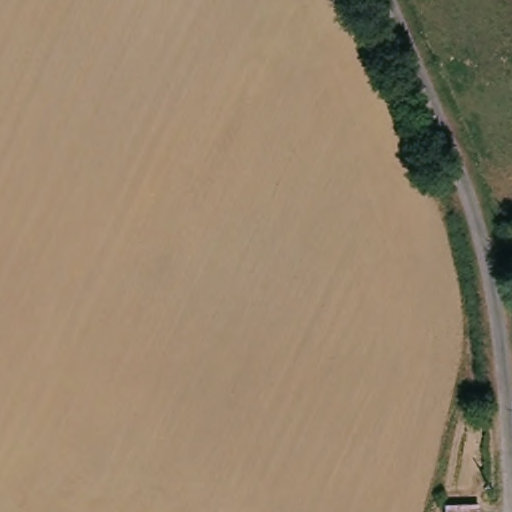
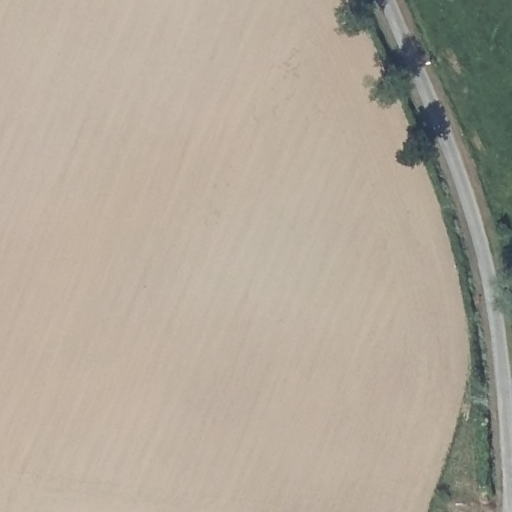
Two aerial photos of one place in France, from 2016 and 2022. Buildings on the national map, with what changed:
[]

